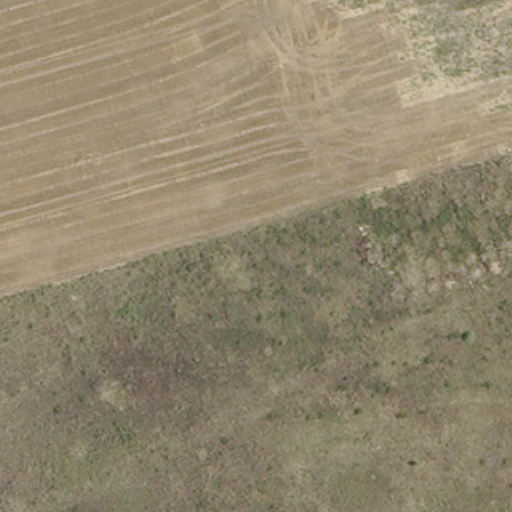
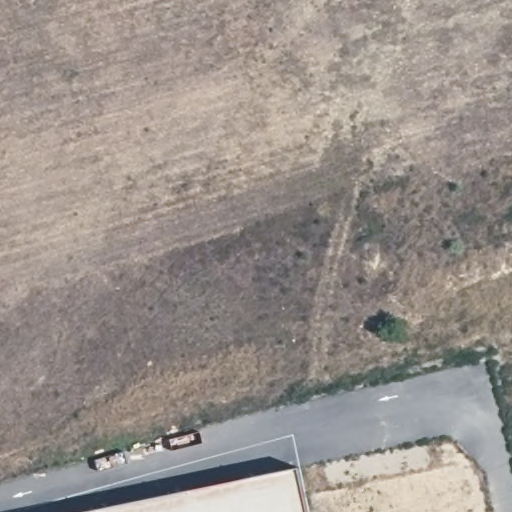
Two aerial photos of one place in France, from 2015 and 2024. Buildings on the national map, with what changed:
new [(307,512),(87,512),(297,468),(307,512)]

